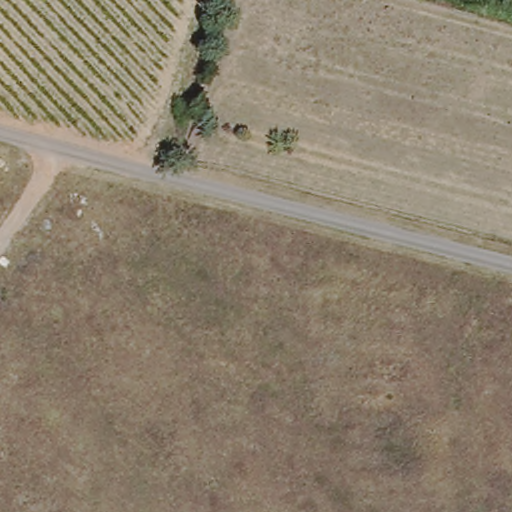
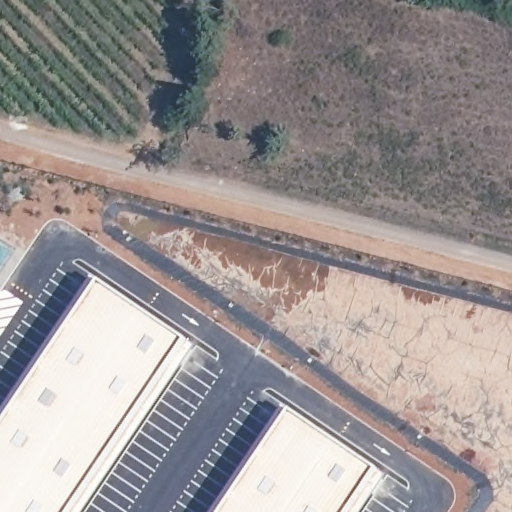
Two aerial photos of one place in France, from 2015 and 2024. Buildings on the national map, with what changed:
new [(188,342),(74,512),(0,512),(0,429),(100,282),(188,342)]
new [(378,471),(350,512),(223,512),(292,412),(378,471)]

